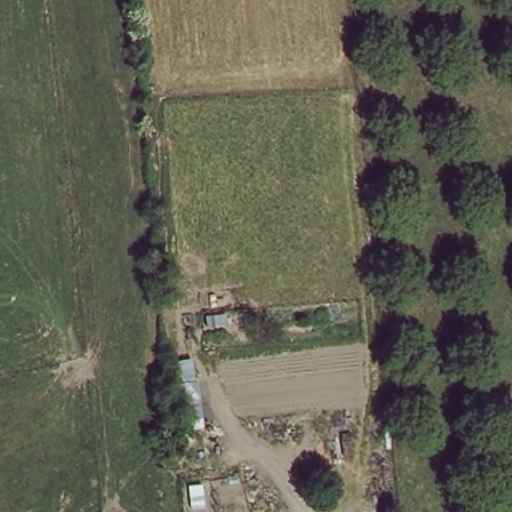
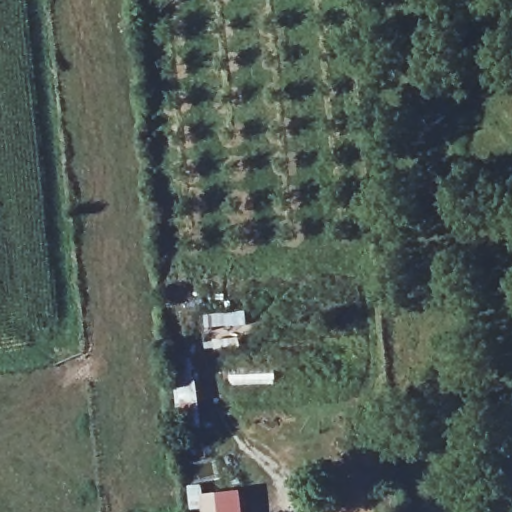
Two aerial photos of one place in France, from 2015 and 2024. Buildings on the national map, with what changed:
new [(238,495),(239,512),(202,512),(201,497),(238,495)]

